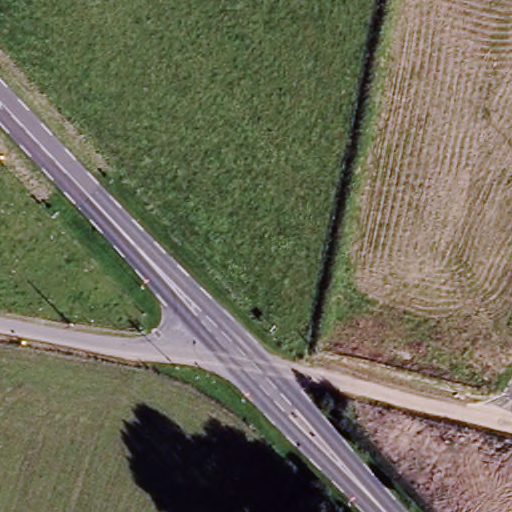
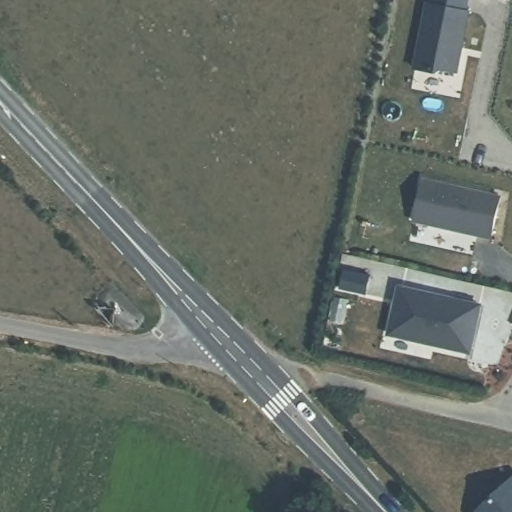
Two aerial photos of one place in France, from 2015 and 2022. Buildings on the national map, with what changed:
new [(433,0),(468,0),(465,12),(432,5),(433,0)]
new [(468,13),(456,74),(442,71),(436,74),(415,70),(428,5),(432,5),(468,13)]
new [(430,179),(504,196),(495,237),(420,219),(430,179)]
new [(372,276),(368,295),(342,288),(346,270),(372,276)]
new [(470,351),(435,343),(434,345),(389,335),(396,305),(398,305),(402,287),(480,306),(470,351)]
new [(482,512),(512,484),(512,512),(482,512)]

